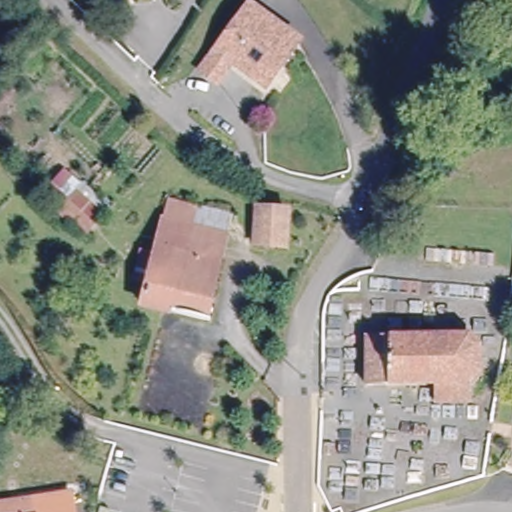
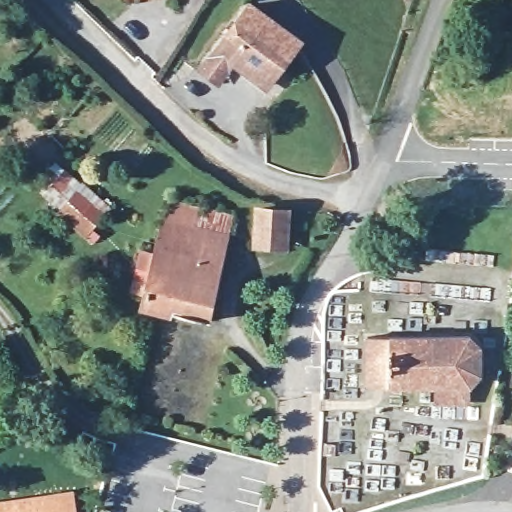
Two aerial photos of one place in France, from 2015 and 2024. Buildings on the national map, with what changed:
unchanged [(260,77),(233,57),(219,76),(202,64),(217,45),(249,0),(298,36),(281,59),(265,80),(260,77)]
unchanged [(106,211),(81,241),(53,217),(78,188),(106,211)]
unchanged [(211,316),(205,314),(142,299),(159,216),(161,216),(166,195),(190,200),(186,221),(222,229),(228,230),(211,316)]
unchanged [(297,205),(294,242),(266,240),(269,203),(297,205)]
unchanged [(362,336),(465,335),(475,346),(475,373),(465,384),(465,402),(431,402),(430,385),(362,385),(362,336)]
unchanged [(67,486),(71,512),(33,512),(29,492),(67,486)]
unchanged [(20,493),(29,492),(33,512),(0,512),(0,498),(20,495),(20,493)]

